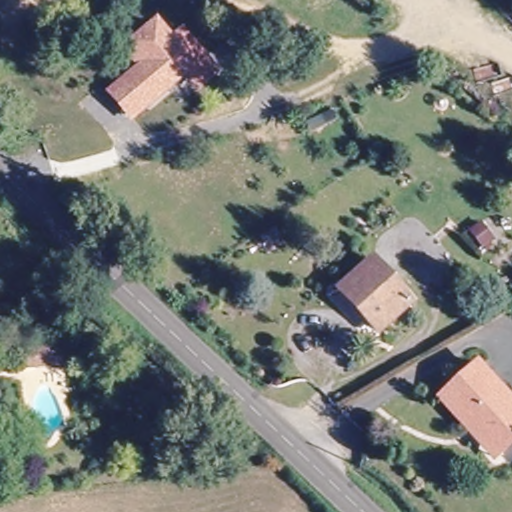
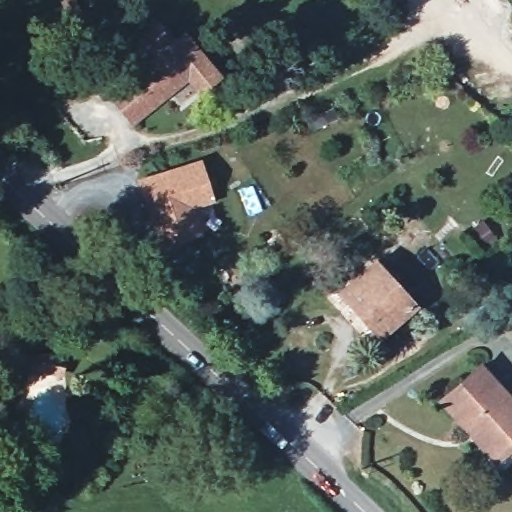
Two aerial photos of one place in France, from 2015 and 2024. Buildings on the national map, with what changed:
unchanged [(132,125),(105,94),(135,70),(128,62),(134,58),(125,47),(156,20),(171,37),(181,30),(218,74),(199,93),(185,81),(132,125)]
new [(190,207),(201,232),(162,245),(136,179),(199,159),(211,200),(190,207)]
unchanged [(482,221),(495,240),(483,248),(470,229),(482,221)]
unchanged [(340,291),(372,262),(411,305),(380,333),(365,318),(355,307),(340,291)]
unchanged [(47,355),(48,363),(62,366),(60,375),(49,372),(20,375),(19,357),(47,355)]
unchanged [(480,366),(512,402),(512,442),(501,452),(493,460),(468,431),(440,401),(480,366)]

